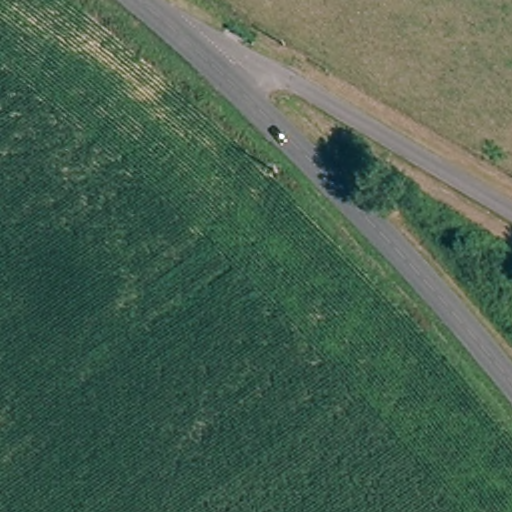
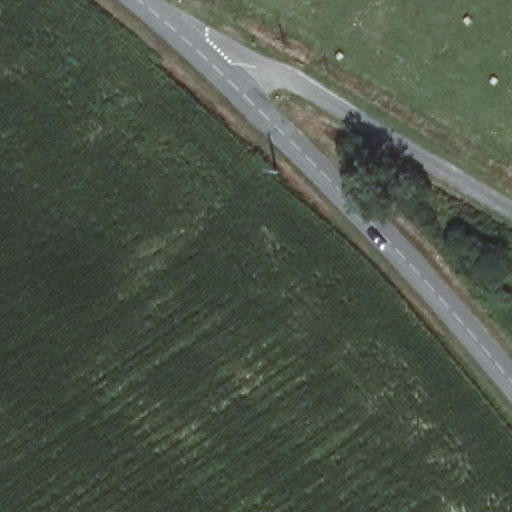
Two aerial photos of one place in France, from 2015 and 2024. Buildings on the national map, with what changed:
[]

